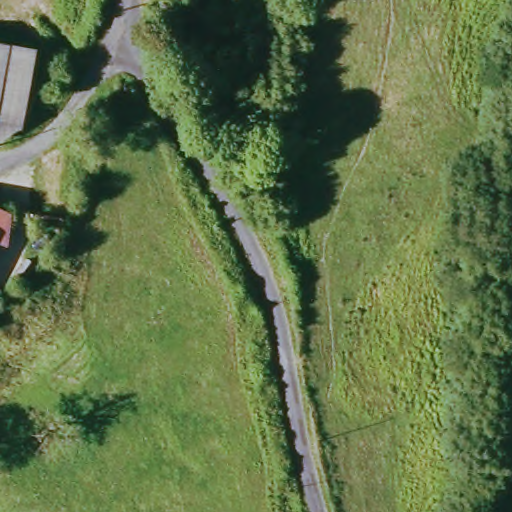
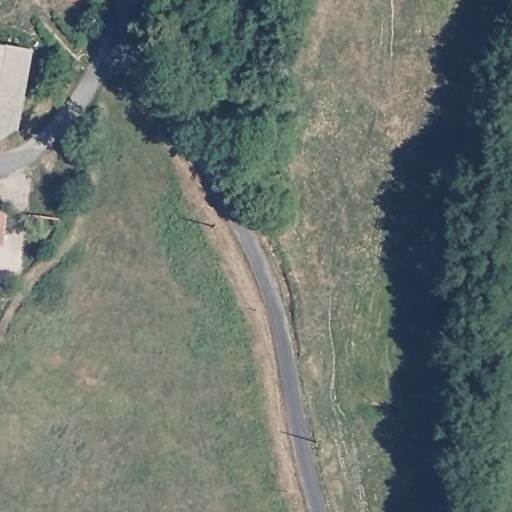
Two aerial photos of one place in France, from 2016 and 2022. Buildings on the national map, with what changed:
unchanged [(0,43),(12,45),(40,50),(27,131),(0,145),(0,43)]
unchanged [(11,243),(0,240),(0,209),(15,216),(11,243)]

